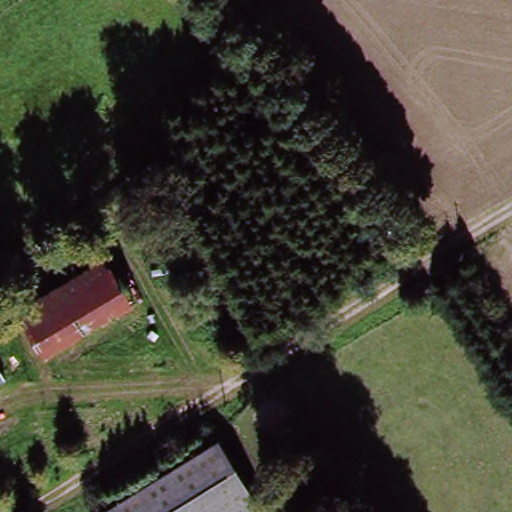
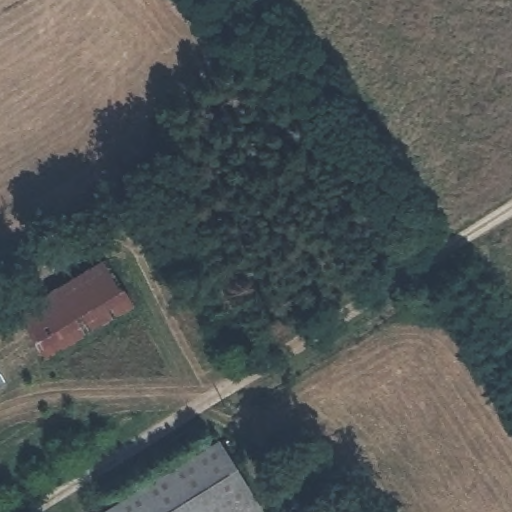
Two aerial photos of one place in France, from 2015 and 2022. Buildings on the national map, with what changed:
unchanged [(109,260),(136,302),(53,355),(25,312),(109,260)]
unchanged [(219,454),(255,512),(122,512),(219,454)]

